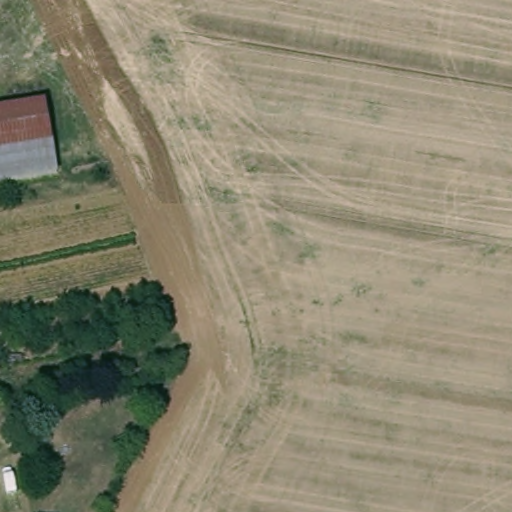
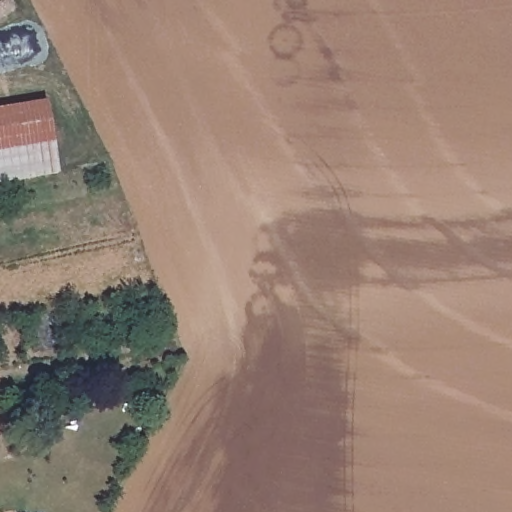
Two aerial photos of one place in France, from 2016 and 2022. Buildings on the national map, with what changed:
unchanged [(0,113),(49,101),(65,167),(0,182),(0,113)]

